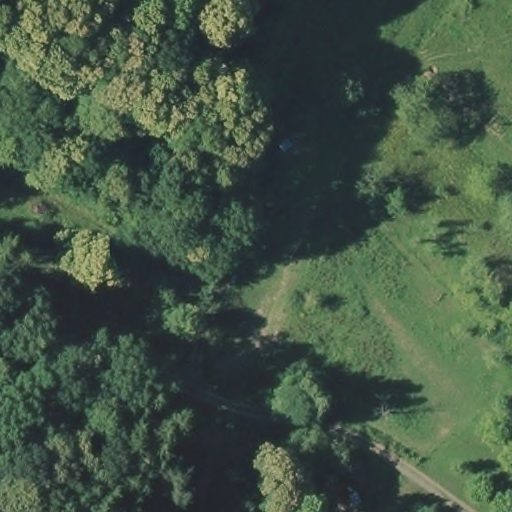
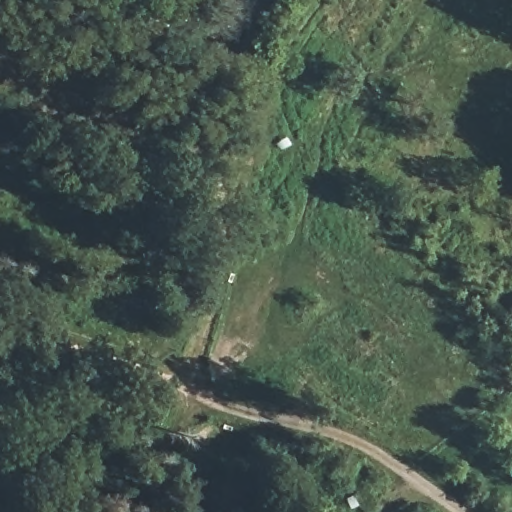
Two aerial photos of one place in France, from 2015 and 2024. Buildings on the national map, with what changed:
unchanged [(495,404),(512,395),(512,424),(506,427),(495,404)]

